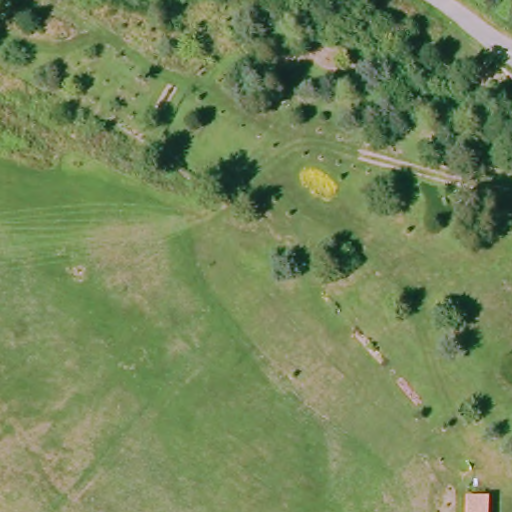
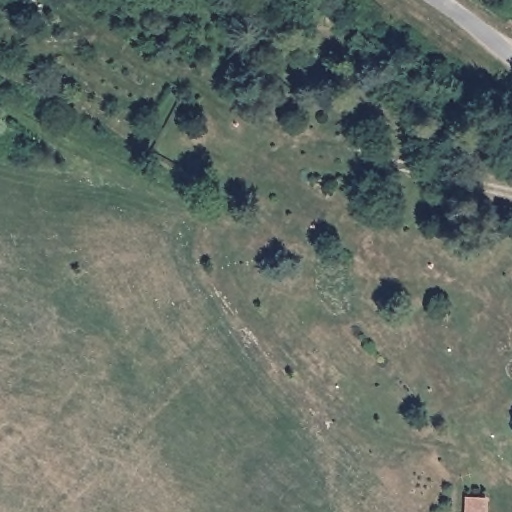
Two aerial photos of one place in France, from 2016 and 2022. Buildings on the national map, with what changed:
unchanged [(487,498),(487,512),(467,512),(468,497),(487,498)]

